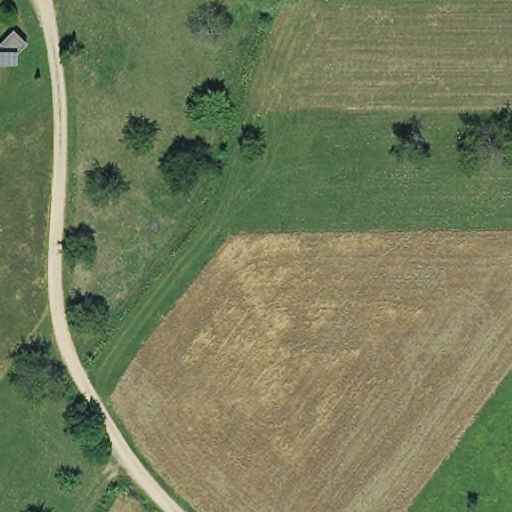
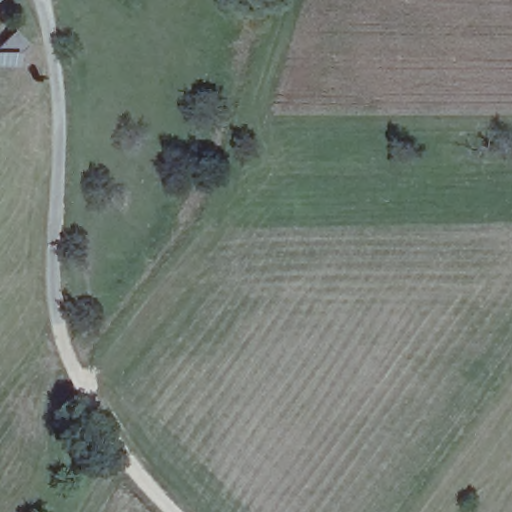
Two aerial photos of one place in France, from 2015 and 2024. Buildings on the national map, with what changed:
[]

